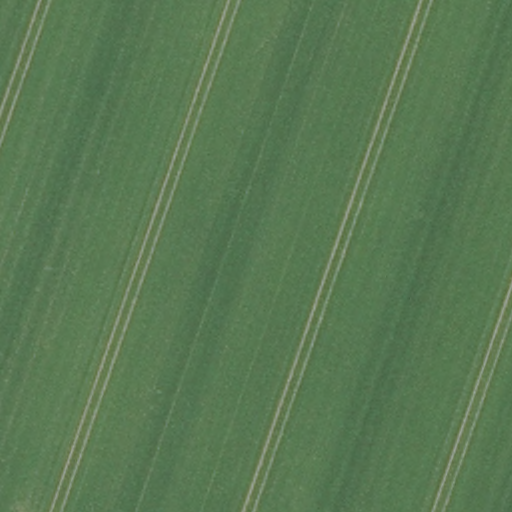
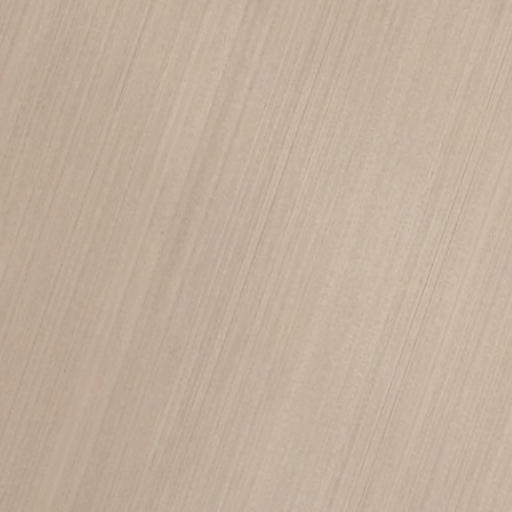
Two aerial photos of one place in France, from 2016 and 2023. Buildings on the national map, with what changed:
[]

